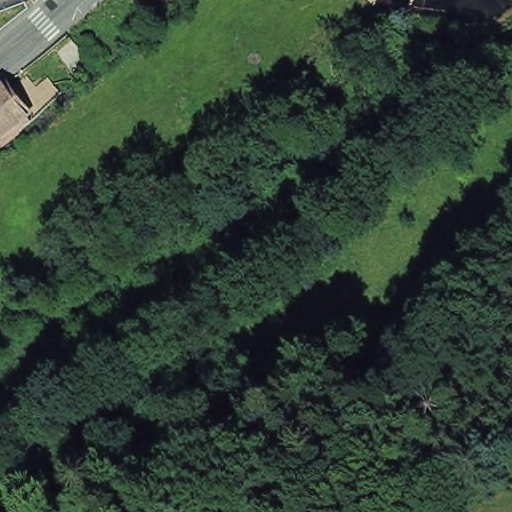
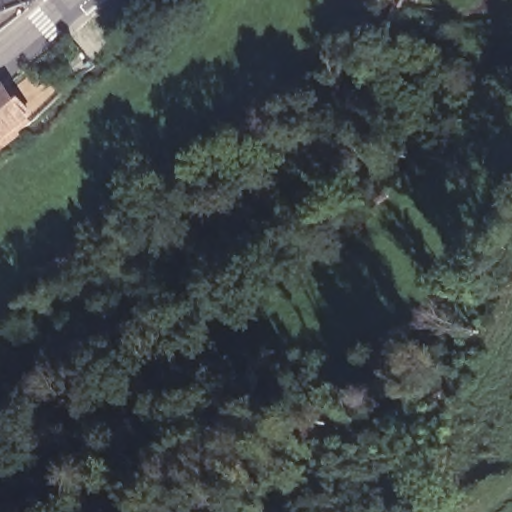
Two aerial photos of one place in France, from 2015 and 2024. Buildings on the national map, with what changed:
unchanged [(100,64),(99,62),(90,52),(104,40),(114,52),(115,52),(100,64)]
unchanged [(7,77),(29,106),(26,108),(29,112),(14,123),(15,124),(17,126),(1,137),(0,136),(0,83),(7,77)]

